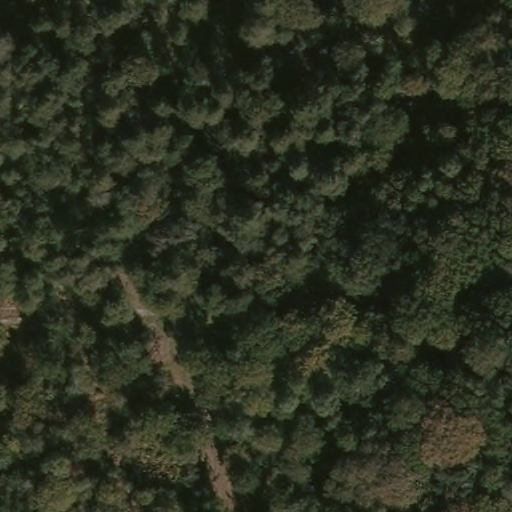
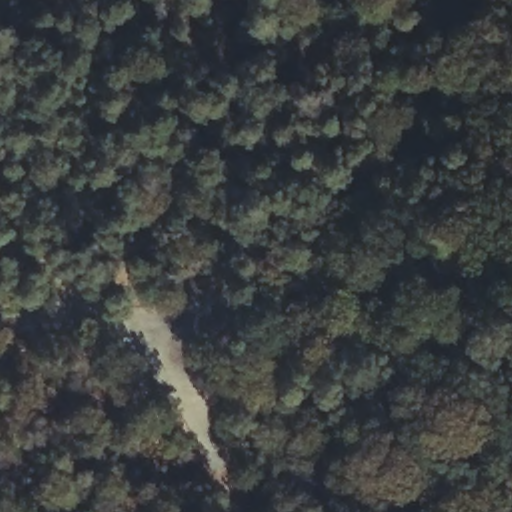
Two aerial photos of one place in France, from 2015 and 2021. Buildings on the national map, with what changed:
[]

